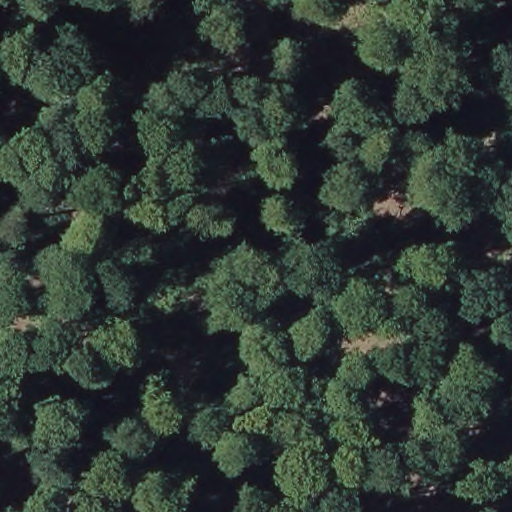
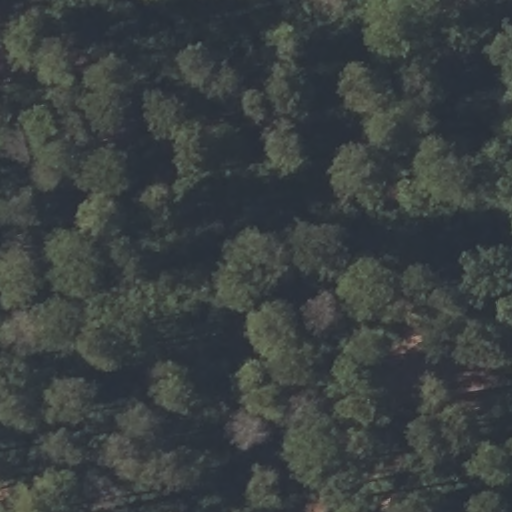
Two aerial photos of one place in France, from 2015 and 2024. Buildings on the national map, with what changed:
[]

